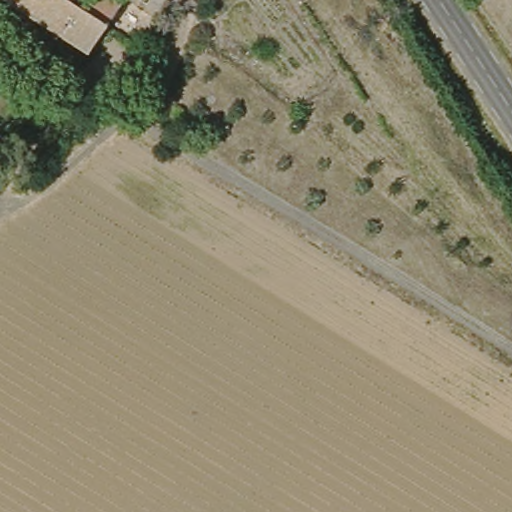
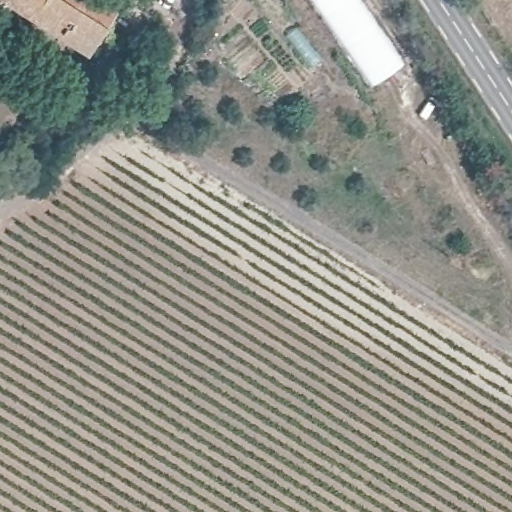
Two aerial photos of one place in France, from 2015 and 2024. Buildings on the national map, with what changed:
unchanged [(98,53),(18,0),(75,0),(115,26),(98,53)]
unchanged [(115,26),(75,0),(131,0),(115,26)]
new [(373,87),(310,0),(359,0),(405,66),(373,87)]

